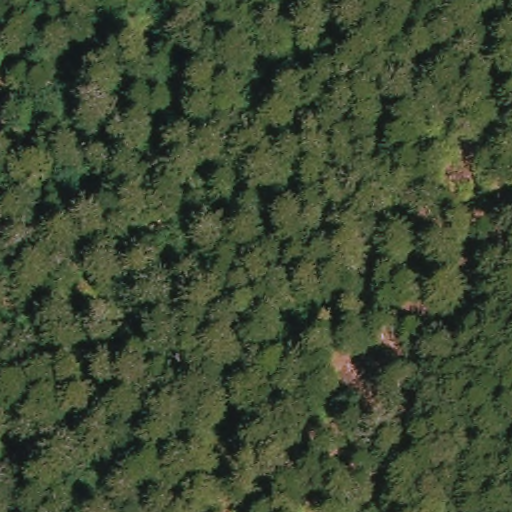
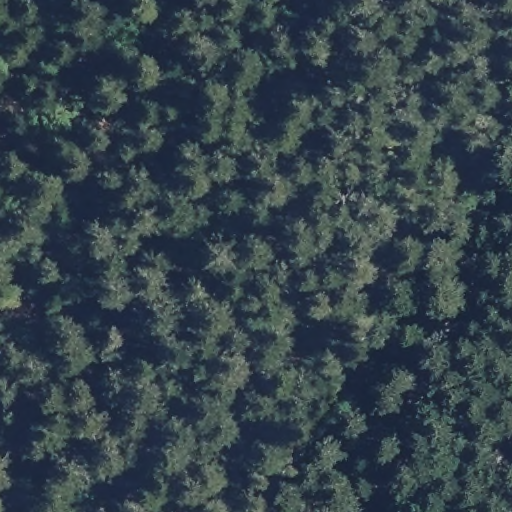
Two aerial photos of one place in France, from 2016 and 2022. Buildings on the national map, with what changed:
[]

